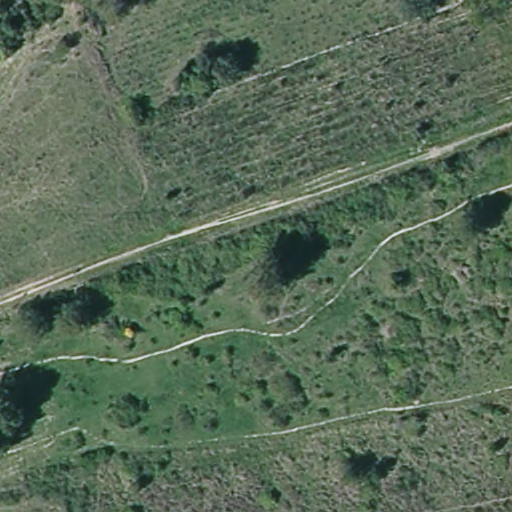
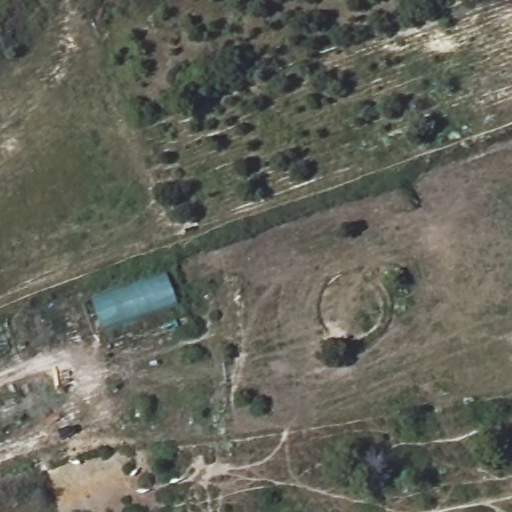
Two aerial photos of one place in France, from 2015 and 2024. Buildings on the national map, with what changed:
new [(167,276),(178,306),(102,332),(90,302),(167,276)]

